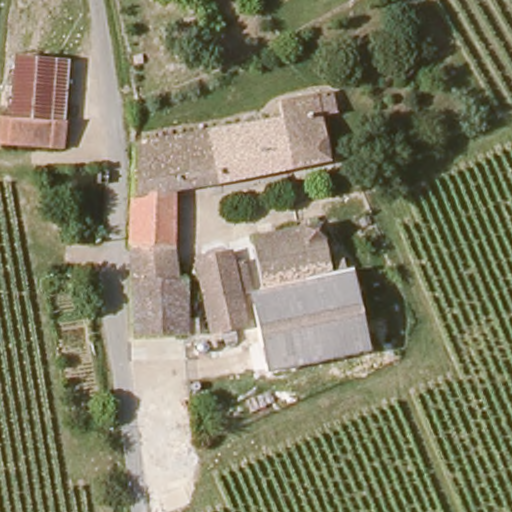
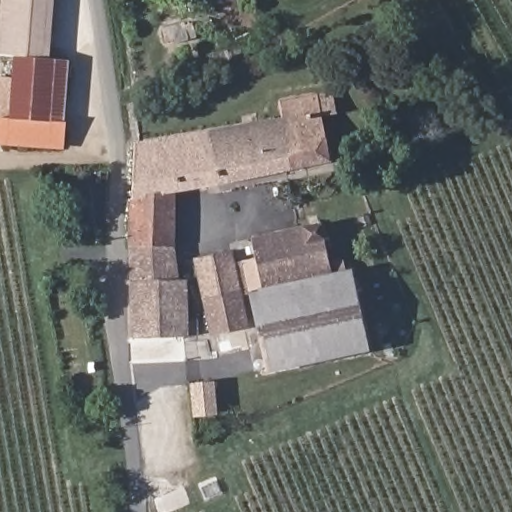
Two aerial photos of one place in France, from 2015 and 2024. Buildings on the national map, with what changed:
new [(52,0),(48,60),(17,57),(0,56),(0,31),(2,0),(52,0)]
unchanged [(17,57),(48,60),(64,60),(62,117),(10,117),(17,57)]
unchanged [(278,105),(318,98),(321,115),(327,165),(227,181),(221,130),(282,122),(278,105)]
unchanged [(62,117),(60,145),(0,143),(0,115),(10,117),(62,117)]
unchanged [(134,241),(137,144),(221,130),(227,181),(176,191),(175,281),(189,281),(188,306),(188,340),(137,344),(134,241)]
unchanged [(282,282),(263,287),(254,250),(242,250),(240,236),(252,235),(321,220),(333,270),(282,282)]
unchanged [(196,257),(229,250),(231,262),(241,260),(252,290),(246,290),(241,291),(205,298),(196,257)]
unchanged [(252,290),(263,287),(282,282),(333,270),(353,267),(366,348),(268,367),(260,327),(252,290)]
unchanged [(211,332),(205,298),(241,291),(246,290),(254,328),(225,331),(211,332)]

